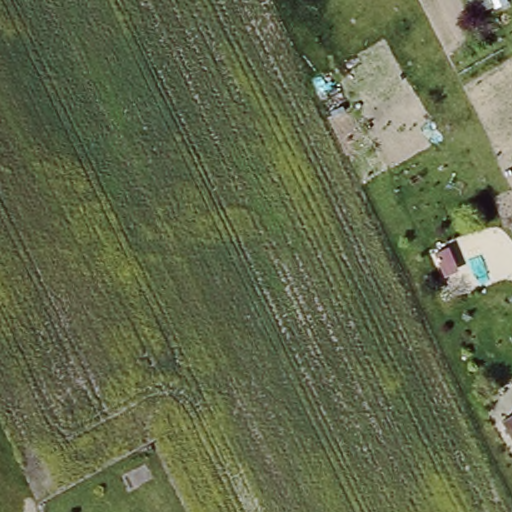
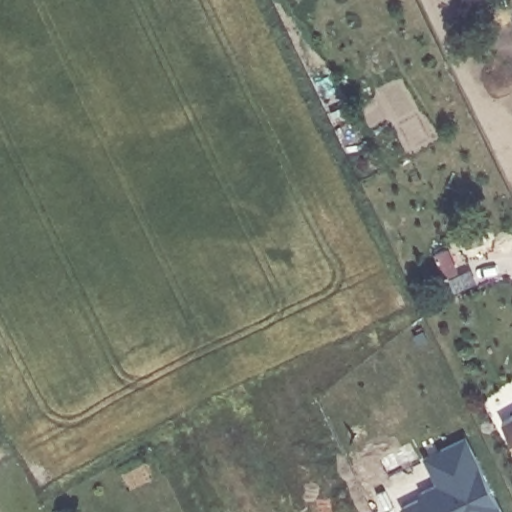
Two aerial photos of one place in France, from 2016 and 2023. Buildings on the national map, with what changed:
unchanged [(512,414),(512,427),(506,417),(512,414)]
new [(423,496),(421,492),(455,476),(441,449),(466,437),(502,512),(405,512),(402,506),(423,496)]
new [(441,449),(455,476),(439,484),(425,456),(441,449)]

